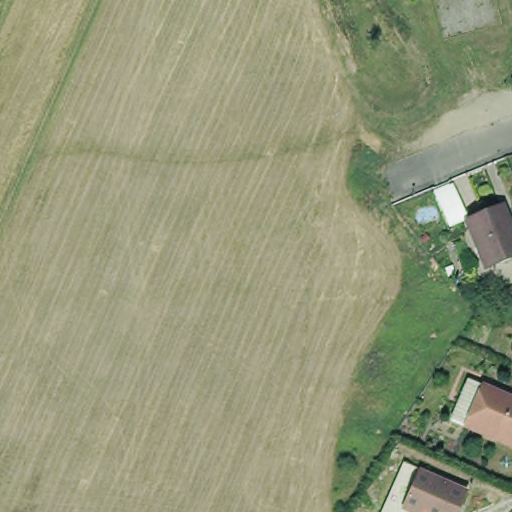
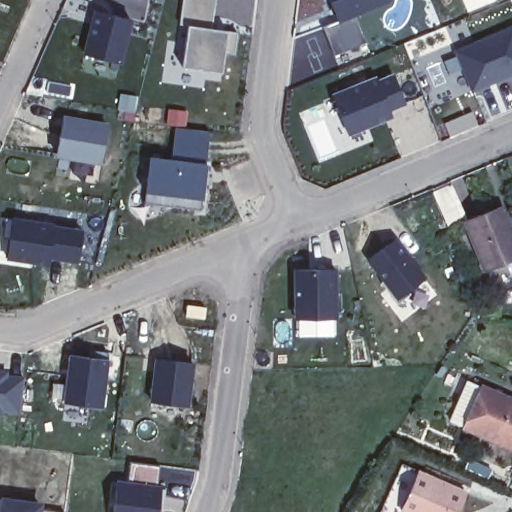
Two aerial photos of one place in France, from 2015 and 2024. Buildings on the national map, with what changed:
new [(212,26),(238,32),(236,53),(224,51),(222,74),(181,67),(186,25),(178,24),(182,0),(216,0),(212,26)]
new [(357,15),(367,41),(334,56),(323,27),(337,21),(329,0),(390,0),(357,15)]
new [(133,18),(120,63),(85,52),(96,8),(133,18)]
new [(456,50),(512,26),(512,77),(473,93),(456,50)]
new [(376,74),(377,77),(392,71),(408,102),(391,109),(393,116),(348,134),(331,92),(376,74)]
new [(100,165),(54,155),(63,112),(106,121),(100,165)]
new [(209,130),(202,198),(146,188),(148,156),(172,157),(176,126),(209,130)]
unchanged [(512,235),(512,264),(486,274),(467,226),(502,211),(512,235)]
new [(54,223),(54,225),(81,229),(79,261),(49,256),(48,264),(4,260),(10,216),(54,223)]
new [(427,277),(397,301),(366,260),(398,237),(427,277)]
new [(338,316),(296,316),(296,267),(337,267),(338,316)]
new [(102,406),(63,402),(69,353),(108,358),(102,406)]
new [(190,406),(148,400),(153,355),(193,362),(190,406)]
new [(8,369),(6,375),(25,376),(20,416),(0,413),(0,368),(8,369)]
unchanged [(460,425),(478,386),(492,392),(512,401),(512,448),(474,431),(460,425)]
new [(128,479),(131,460),(160,465),(158,484),(163,484),(159,512),(110,512),(113,478),(128,479)]
unchanged [(455,512),(404,512),(401,510),(417,470),(464,490),(455,512)]
new [(44,500),(42,512),(0,512),(0,495),(44,500)]

